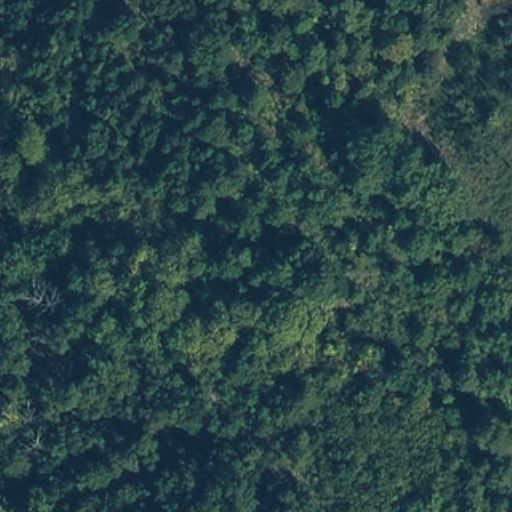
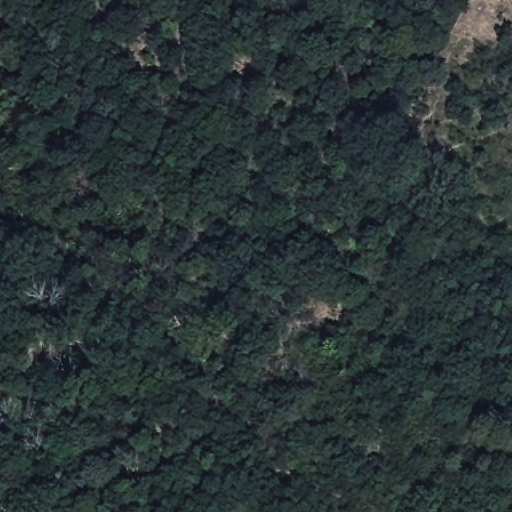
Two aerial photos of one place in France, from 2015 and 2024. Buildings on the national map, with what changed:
[]

